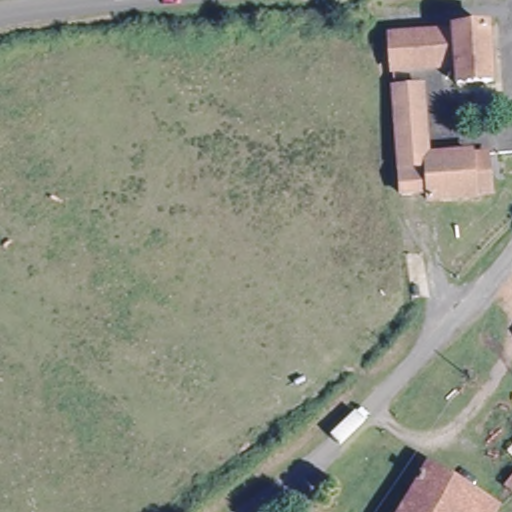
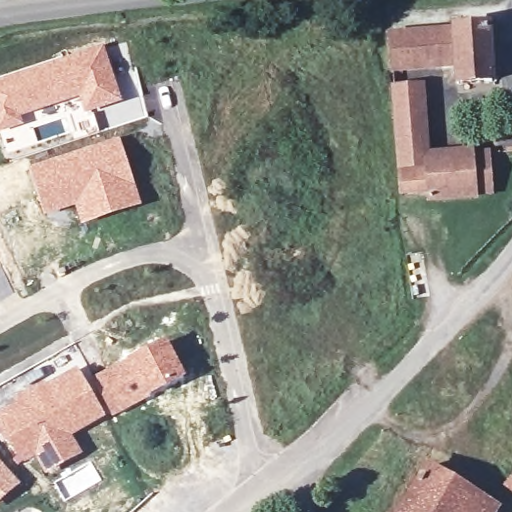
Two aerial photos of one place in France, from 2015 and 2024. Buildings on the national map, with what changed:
unchanged [(495,66),(456,70),(455,56),(396,59),(393,23),(492,15),(495,66)]
new [(122,102),(84,114),(78,98),(22,116),(25,124),(0,132),(0,78),(104,45),(122,102)]
unchanged [(396,183),(390,79),(416,78),(420,146),(423,180),(396,183)]
new [(120,138),(142,206),(81,227),(74,208),(45,216),(28,166),(120,138)]
unchanged [(420,146),(468,143),(468,146),(481,145),(483,183),(424,188),(423,180),(420,146)]
new [(150,398),(113,417),(93,377),(127,361),(167,339),(187,378),(150,398)]
new [(36,457),(25,464),(24,462),(19,466),(14,460),(19,456),(0,434),(0,412),(16,404),(13,399),(45,381),(47,386),(78,368),(106,418),(73,437),(82,455),(46,475),(36,457)]
demolished [(482,417),(512,382),(512,444),(482,417)]
new [(0,502),(0,460),(21,485),(0,502)]
unchanged [(426,463),(494,505),(490,512),(398,512),(426,463)]
unchanged [(506,478),(512,472),(512,483),(506,478)]

